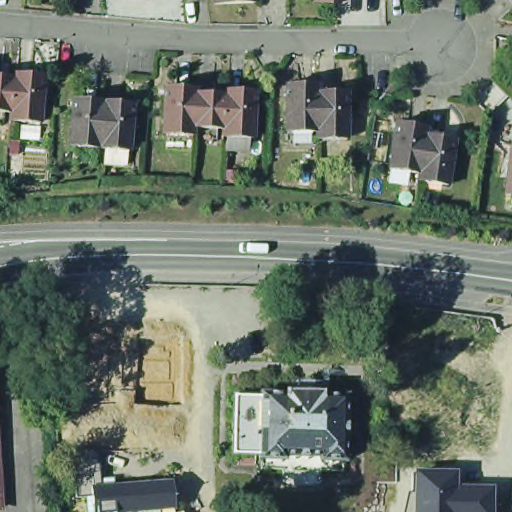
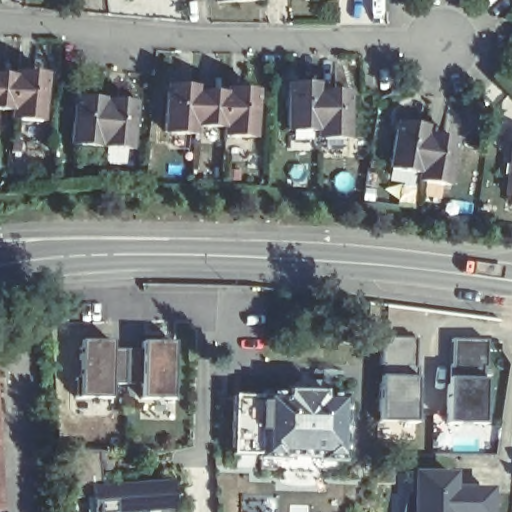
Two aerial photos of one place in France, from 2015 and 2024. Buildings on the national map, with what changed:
unchanged [(120,2),(120,0),(139,0),(120,2)]
unchanged [(252,8),(210,10),(210,0),(252,0),(252,8)]
unchanged [(36,76),(44,83),(47,83),(43,126),(13,123),(14,117),(16,83),(17,74),(36,76)]
unchanged [(0,78),(4,78),(11,83),(16,83),(14,117),(0,116),(0,78)]
unchanged [(285,131),(285,93),(290,92),(295,87),(315,87),(315,93),(315,132),(285,131)]
unchanged [(161,139),(165,98),(168,99),(177,92),(195,94),(195,98),(193,133),(192,140),(161,139)]
unchanged [(335,94),(342,100),(346,100),(346,140),(315,139),(315,132),(315,93),(335,94)]
unchanged [(246,96),(252,103),(255,103),(252,144),(223,142),(223,134),(225,104),(225,95),(246,96)]
unchanged [(213,99),(217,103),(225,104),(223,134),(193,133),(195,98),(213,99)]
unchanged [(68,150),(70,113),(75,112),(81,106),(101,108),(97,153),(68,150)]
unchanged [(120,110),(128,117),(131,117),(127,155),(97,153),(101,108),(120,110)]
unchanged [(387,175),(393,136),(397,136),(402,130),(425,134),(423,140),(417,181),(387,175)]
unchanged [(445,143),(448,151),(453,152),(446,192),(415,187),(417,181),(423,140),(445,143)]
unchanged [(510,198),(512,178),(512,198),(510,198)]
new [(419,337),(419,423),(382,422),(384,337),(419,337)]
new [(488,341),(487,426),(451,426),(454,339),(488,341)]
new [(111,342),(111,350),(141,350),(141,342),(174,342),(172,381),(175,381),(175,401),(140,401),(140,385),(110,385),(110,401),(75,399),(75,378),(77,378),(79,341),(111,342)]
unchanged [(316,404),(340,405),(337,471),(315,471),(312,467),(278,465),(277,469),(251,468),(252,465),(226,463),(228,404),(256,405),(256,401),(280,403),(280,399),(281,389),(313,391),(313,401),(316,401),(316,404)]
new [(75,492),(73,446),(99,448),(101,481),(172,480),(174,512),(160,512),(160,509),(115,509),(115,512),(102,512),(100,494),(75,492)]
unchanged [(454,489),(490,489),(490,512),(412,512),(411,472),(454,474),(454,489)]
new [(180,512),(176,512),(180,511),(180,512)]

